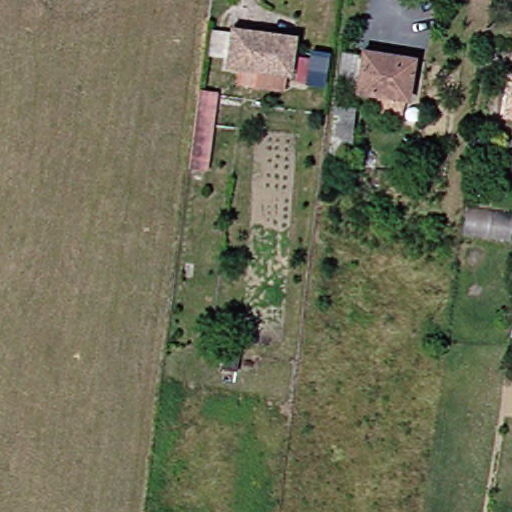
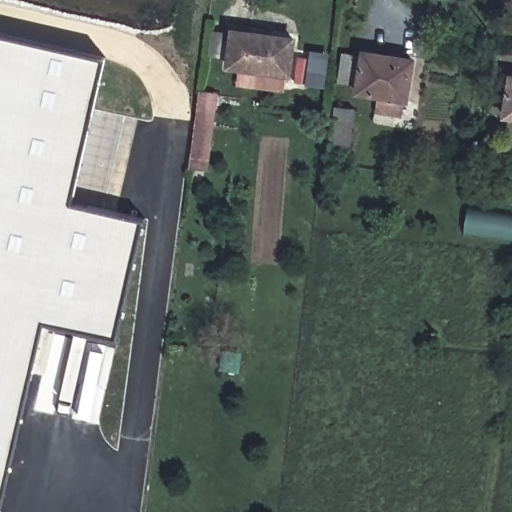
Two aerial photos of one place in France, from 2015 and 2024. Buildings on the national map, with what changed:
unchanged [(280,82),(219,74),(224,39),(225,30),(266,36),(265,45),(286,48),(280,82)]
new [(69,201),(141,220),(114,335),(43,320),(0,504),(0,34),(103,58),(69,201)]
unchanged [(407,66),(401,106),(351,96),(359,58),(407,66)]
unchanged [(498,117),(505,78),(512,79),(512,120),(498,117)]
unchanged [(204,162),(187,160),(195,96),(213,99),(204,162)]
unchanged [(332,123),(333,114),(354,117),(348,160),(328,158),(332,123)]
unchanged [(491,162),(496,138),(512,141),(512,166),(491,162)]

